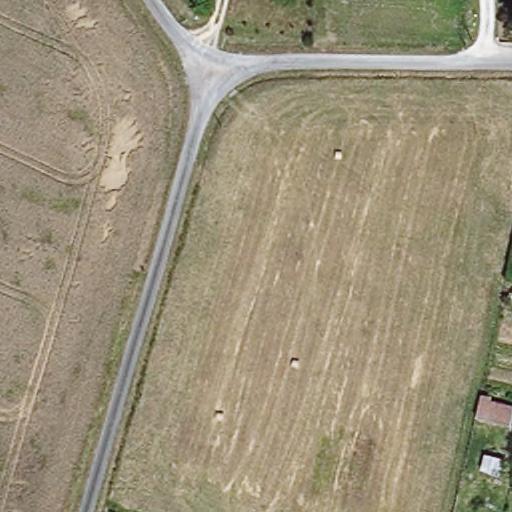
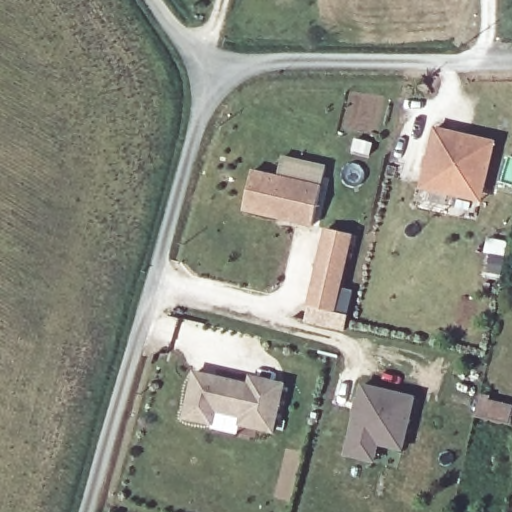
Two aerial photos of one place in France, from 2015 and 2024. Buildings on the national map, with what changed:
new [(497,141),(482,202),(419,188),(433,127),(497,141)]
new [(252,172),(277,177),(281,157),(324,167),(310,227),(243,213),(252,172)]
new [(342,333),(304,322),(323,230),(351,236),(338,289),(351,292),(342,333)]
new [(248,382),(249,375),(284,383),(274,434),(236,426),(238,419),(217,414),(214,426),(180,419),(193,371),(248,382)]
new [(359,385),(413,398),(400,452),(374,447),(372,464),(344,459),(359,385)]
unchanged [(474,414),(478,398),(511,406),(508,422),(474,414)]

